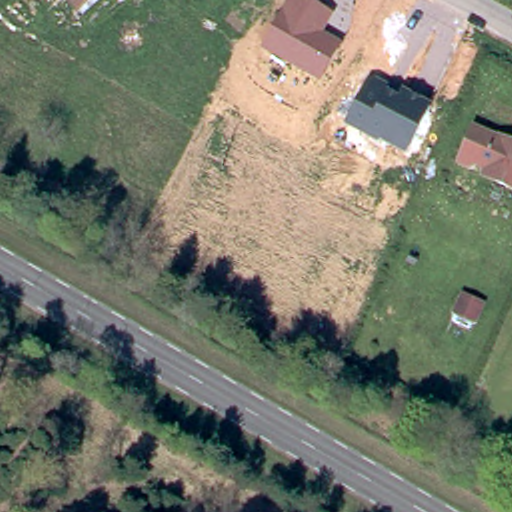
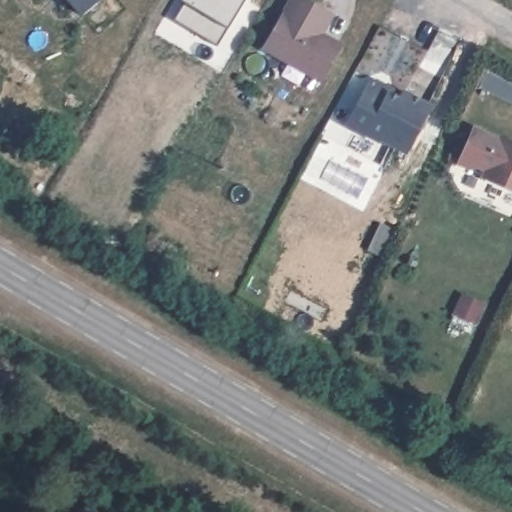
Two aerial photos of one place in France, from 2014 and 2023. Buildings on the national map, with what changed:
unchanged [(79,11),(67,0),(92,0),(79,11)]
new [(205,38),(174,20),(184,3),(181,1),(182,0),(245,0),(228,29),(218,46),(205,38)]
unchanged [(335,15),(325,34),(343,43),(321,83),(262,50),(289,0),(309,0),(335,15)]
unchanged [(392,87),(391,89),(398,93),(401,87),(433,107),(406,156),(380,144),(378,147),(343,126),(370,75),(392,87)]
unchanged [(471,125),(512,144),(512,193),(502,189),(503,182),(456,165),(471,125)]

